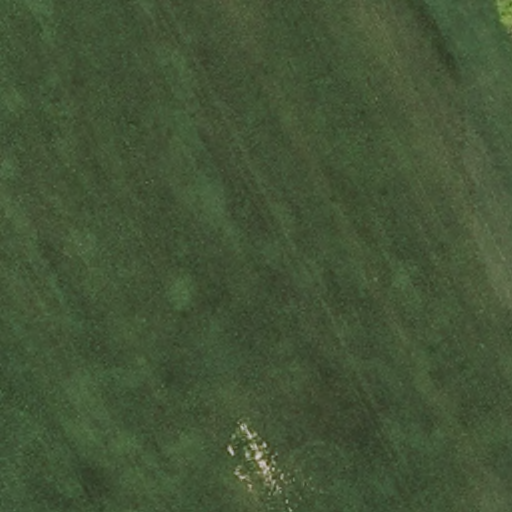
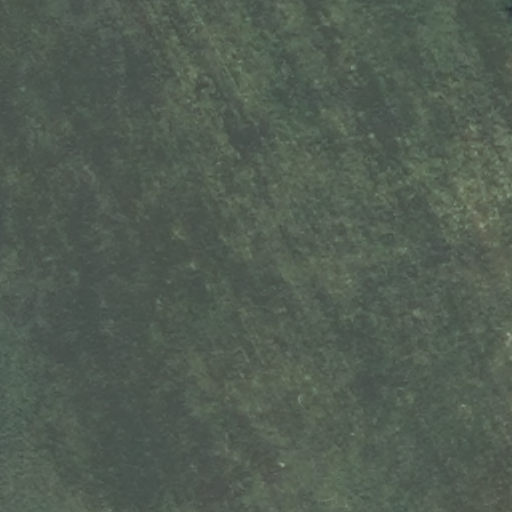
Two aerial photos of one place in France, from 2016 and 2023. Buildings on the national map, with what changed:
[]

